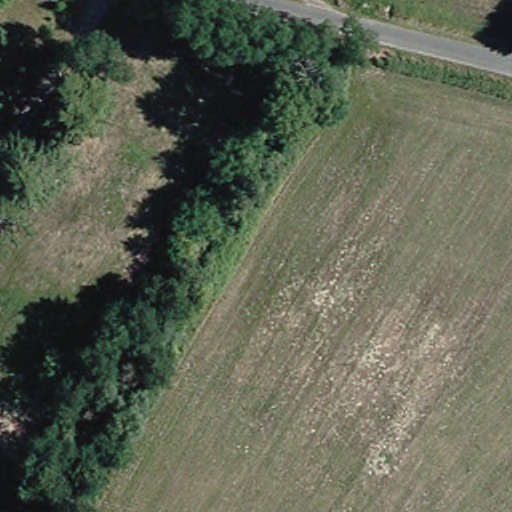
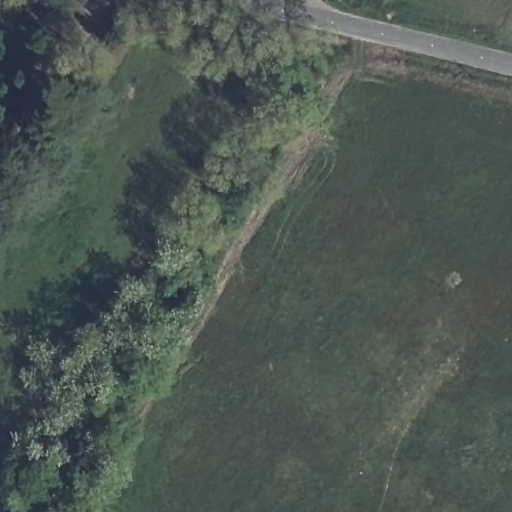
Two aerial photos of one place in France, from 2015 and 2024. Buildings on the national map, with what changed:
unchanged [(0,469),(0,468),(1,468),(0,469)]

